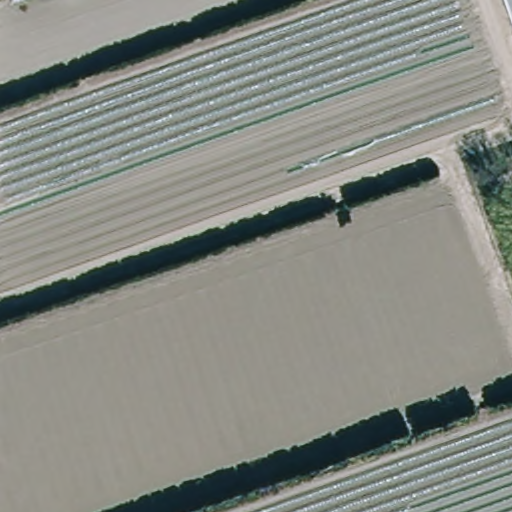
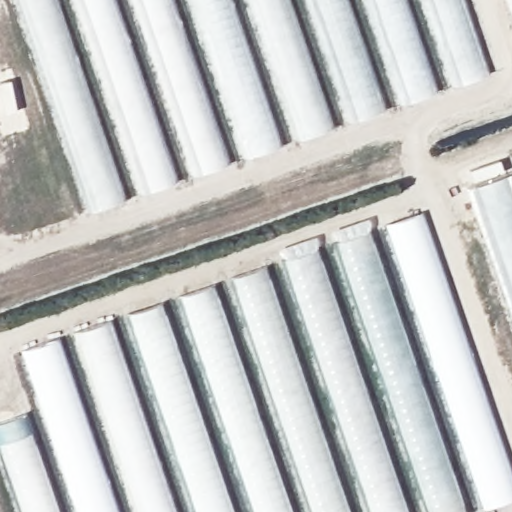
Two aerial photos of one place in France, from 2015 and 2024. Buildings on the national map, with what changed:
new [(89,212),(15,0),(55,0),(124,199),(89,212)]
new [(176,182),(141,194),(73,0),(112,0),(176,182)]
new [(132,0),(171,0),(228,163),(193,175),(132,0)]
new [(280,146),(244,159),(189,0),(229,0),(280,146)]
new [(297,140),(248,0),(288,0),(332,128),(297,140)]
new [(382,110),(349,121),(306,0),(345,0),(382,110)]
new [(400,105),(363,0),(404,0),(436,92),(400,105)]
new [(489,74),(452,86),(422,0),(464,0),(489,74)]
unchanged [(506,0),(512,0),(512,16),(506,0)]
new [(512,173),(512,319),(467,189),(512,173)]
new [(420,212),(512,479),(512,499),(485,508),(388,224),(420,212)]
new [(369,230),(466,512),(429,512),(336,242),(369,230)]
new [(407,512),(370,512),(283,259),(316,248),(407,512)]
new [(264,267),(348,512),(312,512),(232,278),(264,267)]
new [(290,512),(254,512),(180,296),(213,285),(290,512)]
new [(160,302),(232,512),(196,512),(128,314),(160,302)]
new [(174,512),(138,512),(76,332),(108,321),(174,512)]
new [(55,338),(116,512),(80,512),(23,350),(55,338)]
new [(58,512),(20,512),(0,457),(0,422),(23,414),(58,512)]

